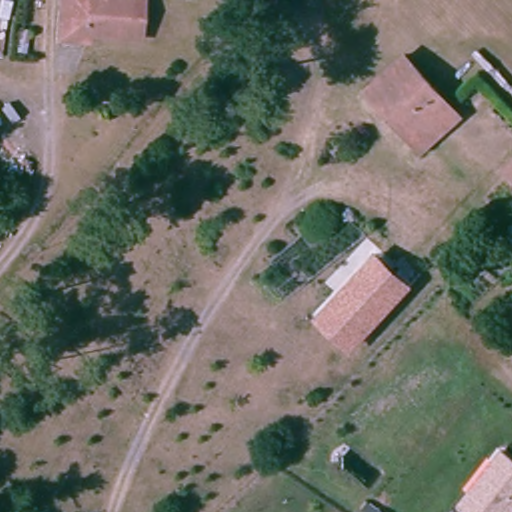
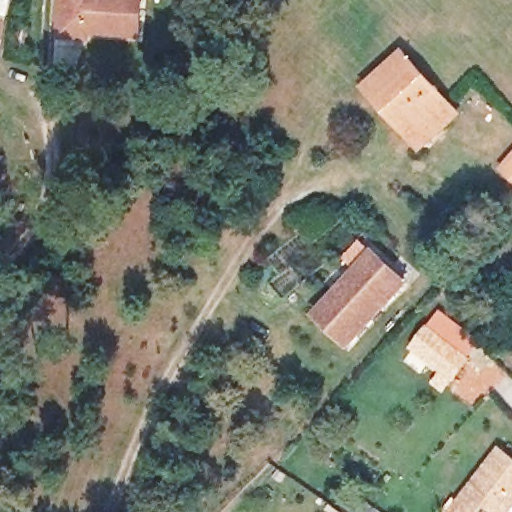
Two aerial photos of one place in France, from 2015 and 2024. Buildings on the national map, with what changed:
unchanged [(55,41),(59,0),(137,0),(134,40),(83,37),(82,44),(72,42),(55,41)]
unchanged [(360,90),(397,55),(452,113),(434,130),(415,148),(375,105),(360,90)]
unchanged [(496,175),(512,155),(512,188),(496,175)]
unchanged [(370,265),(377,256),(409,286),(401,294),(351,347),(319,318),(370,265)]
new [(426,323),(428,325),(439,309),(480,340),(469,358),(471,360),(443,392),(430,383),(440,371),(408,348),(426,323)]
unchanged [(468,488),(499,449),(512,459),(512,504),(506,512),(465,512),(455,505),(468,488)]

